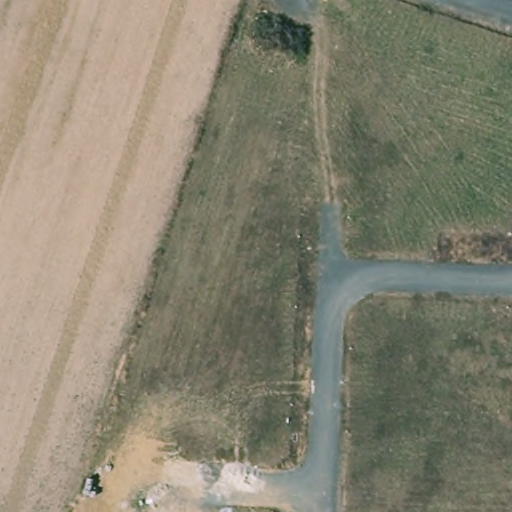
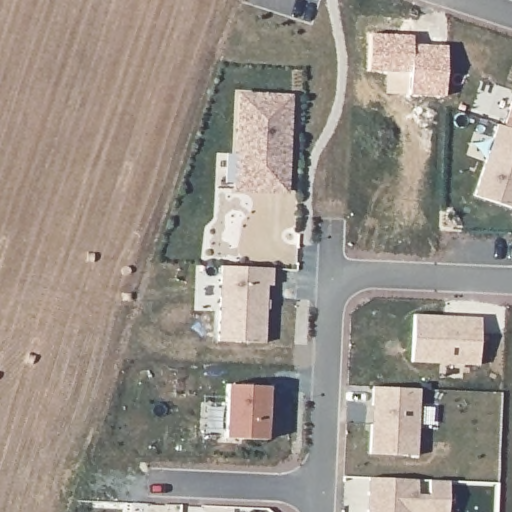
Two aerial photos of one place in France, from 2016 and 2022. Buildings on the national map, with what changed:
new [(240,90),(291,93),(286,188),(235,186),(240,90)]
new [(512,103),(512,130),(504,128),(512,103)]
new [(498,126),(504,128),(512,130),(512,209),(475,197),(498,126)]
new [(272,285),(266,286),(265,342),(217,341),(220,266),(272,269),(272,285)]
new [(415,314),(480,317),(477,365),(411,361),(415,314)]
new [(226,386),(267,388),(265,442),(224,440),(226,386)]
new [(416,455),(370,453),(372,387),(420,388),(416,455)]
new [(416,480),(415,494),(430,495),(428,481),(448,481),(448,512),(367,512),(368,478),(416,480)]

